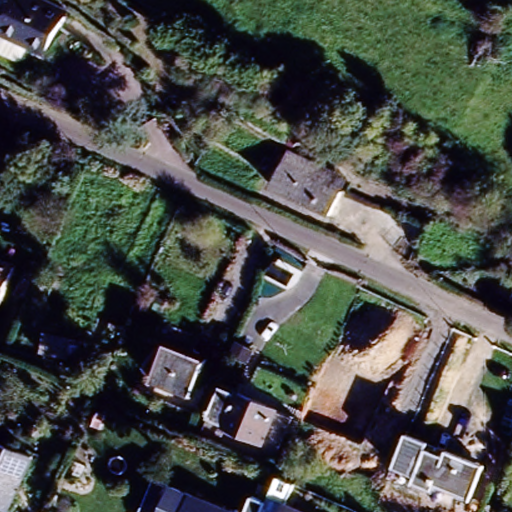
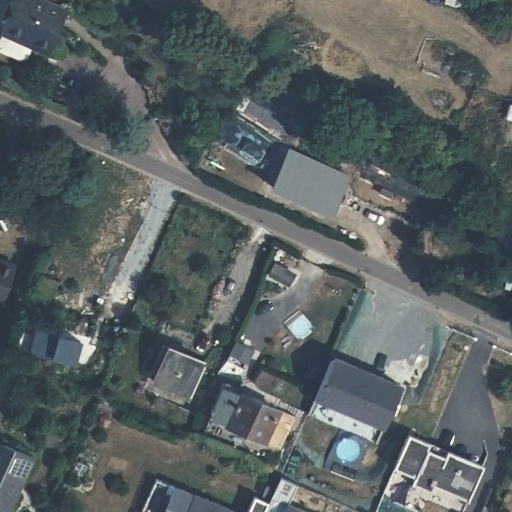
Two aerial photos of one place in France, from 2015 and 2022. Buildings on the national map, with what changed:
unchanged [(16,0),(35,0),(64,10),(52,50),(45,51),(3,37),(16,0)]
unchanged [(346,175),(326,217),(267,186),(285,149),(346,175)]
unchanged [(0,304),(0,258),(15,263),(1,305),(0,304)]
unchanged [(33,350),(58,357),(52,380),(28,373),(33,350)]
unchanged [(166,351),(200,364),(188,394),(154,380),(166,351)]
new [(383,437),(317,407),(333,368),(339,366),(402,395),(383,437)]
unchanged [(217,380),(278,405),(264,437),(205,412),(217,380)]
demolished [(363,451),(326,436),(334,414),(372,428),(363,451)]
unchanged [(421,497),(424,490),(406,482),(404,475),(389,468),(405,430),(421,437),(418,445),(441,455),(445,446),(483,461),(468,500),(463,498),(458,511),(421,497)]
unchanged [(20,485),(12,481),(1,508),(0,508),(0,439),(33,453),(20,485)]
unchanged [(306,509),(313,512),(283,512),(292,487),(295,488),(310,495),(306,509)]
unchanged [(172,495),(191,502),(195,493),(243,511),(243,512),(166,512),(172,495)]

